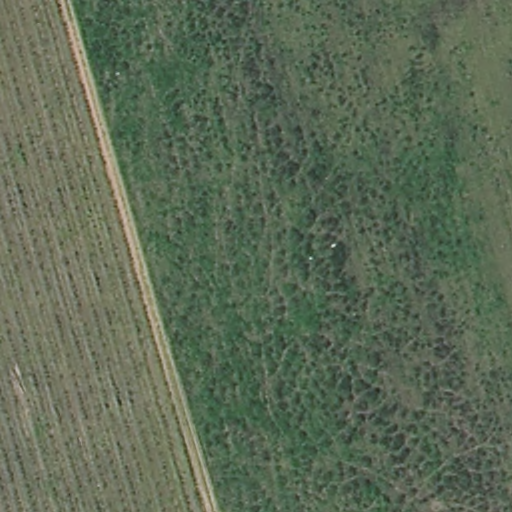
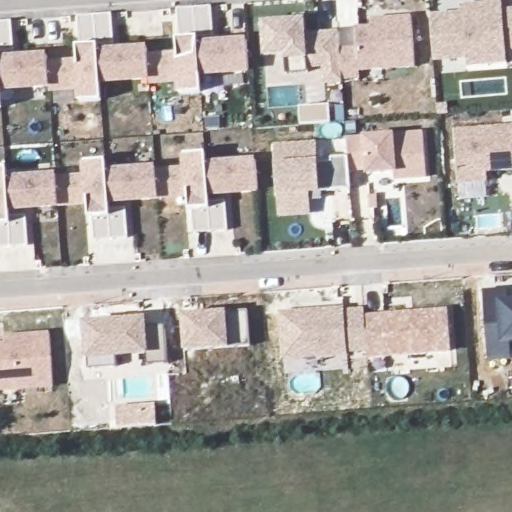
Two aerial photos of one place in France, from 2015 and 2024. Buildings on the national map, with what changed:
new [(467,58),(435,60),(432,19),(462,16),(461,9),(504,6),(504,14),(512,13),(512,48),(507,49),(507,54),(508,64),(468,68),(467,58)]
new [(178,17),(196,15),(212,14),(214,45),(198,45),(199,53),(201,81),(202,93),(181,94),(180,80),(151,81),(149,58),(181,55),(178,17)]
new [(288,76),(287,61),(286,56),(266,57),(264,24),(296,23),(295,18),(305,16),(305,27),(306,36),(340,34),(341,50),(343,81),(344,83),(325,84),(324,69),(308,69),(309,74),(288,76)]
new [(356,29),(372,29),(372,21),(381,20),(412,18),(416,68),(361,72),(361,79),(343,81),(341,50),(358,49),(356,29)]
new [(115,51),(99,53),(96,23),(113,21),(115,51)]
new [(78,24),(96,23),(99,60),(101,89),(102,100),(81,101),(80,87),(51,89),(50,65),(82,63),(78,24)]
new [(13,29),(15,59),(0,61),(0,31),(13,29)]
new [(249,49),(251,78),(201,81),(199,53),(249,49)]
new [(149,56),(149,58),(151,81),(152,85),(101,89),(99,60),(149,56)]
new [(2,68),(50,64),(50,65),(51,89),(52,93),(2,96),(0,75),(0,68),(2,68)]
new [(2,96),(2,108),(0,108),(0,75),(2,96)]
new [(512,172),(488,174),(489,183),(459,185),(455,132),(512,128),(512,172)]
new [(394,174),(368,176),(368,172),(350,173),(349,159),(348,141),(425,135),(428,179),(402,182),(395,182),(394,174)]
new [(318,146),(320,165),(334,164),(333,160),(349,159),(350,173),(352,192),(280,198),(276,149),(318,146)]
new [(228,233),(212,234),(194,235),(191,197),(159,199),(158,192),(157,175),(186,173),(185,158),(206,156),(207,169),(209,197),(210,204),(226,203),(228,233)]
new [(128,240),(112,242),(94,243),(92,204),(60,207),(57,182),(87,180),(85,165),(107,164),(107,176),(109,204),(110,212),(127,210),(128,240)]
new [(257,164),(259,193),(209,197),(207,169),(257,164)]
new [(28,247),(12,248),(0,249),(0,171),(7,171),(7,177),(7,183),(10,211),(10,218),(27,217),(28,247)]
new [(157,172),(157,175),(158,192),(159,199),(159,200),(109,204),(107,176),(157,172)]
new [(57,179),(57,182),(60,207),(10,211),(7,183),(57,179)]
new [(512,343),(512,360),(489,362),(484,292),(508,290),(508,302),(512,302),(512,343)]
new [(345,311),(345,313),(365,312),(366,318),(368,352),(348,354),(348,356),(285,361),(282,315),(345,311)]
new [(449,312),(452,353),(369,359),(368,352),(366,318),(449,312)]
new [(249,313),(251,348),(186,353),(183,317),(249,313)]
new [(115,317),(127,316),(127,322),(146,320),(146,329),(166,327),(169,364),(148,366),(147,354),(117,357),(118,369),(89,371),(86,325),(115,323),(115,317)]
new [(6,347),(5,339),(16,338),(51,335),(55,389),(0,393),(0,347),(6,347)]

